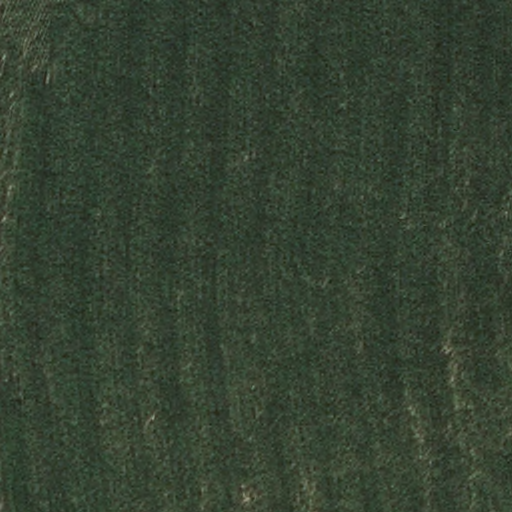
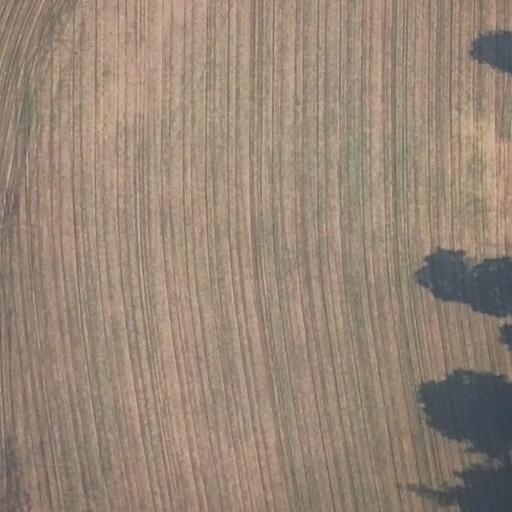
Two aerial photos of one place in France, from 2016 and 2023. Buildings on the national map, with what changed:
[]

